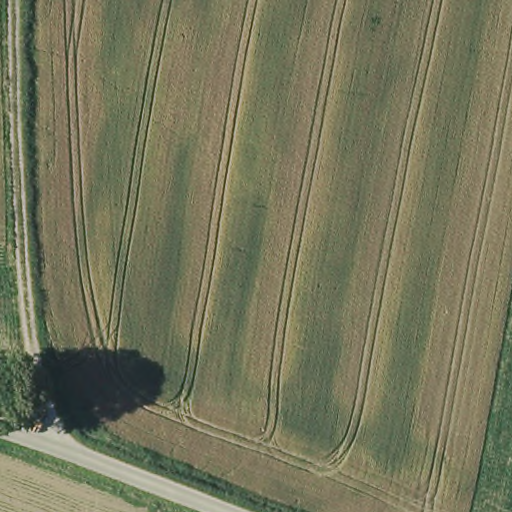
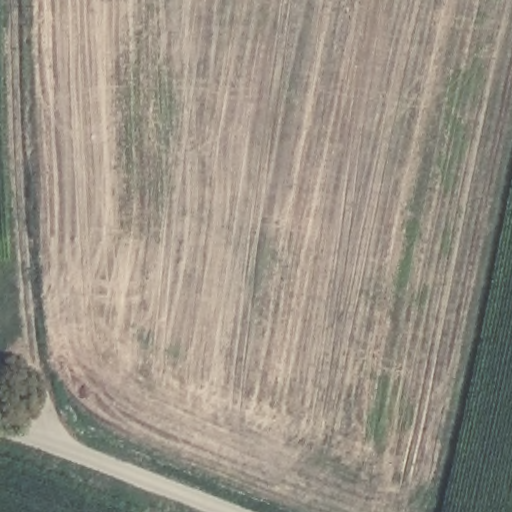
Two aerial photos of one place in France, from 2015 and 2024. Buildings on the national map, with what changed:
[]

